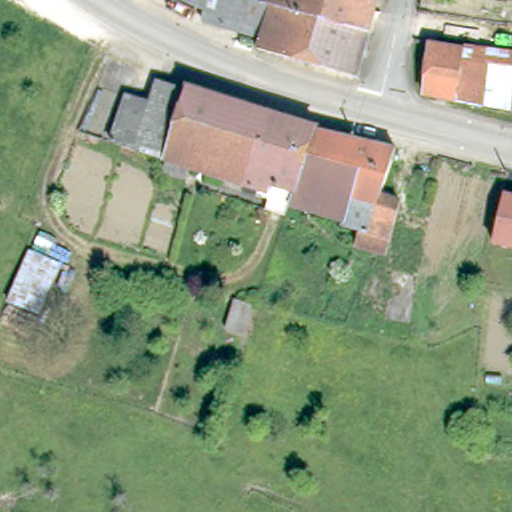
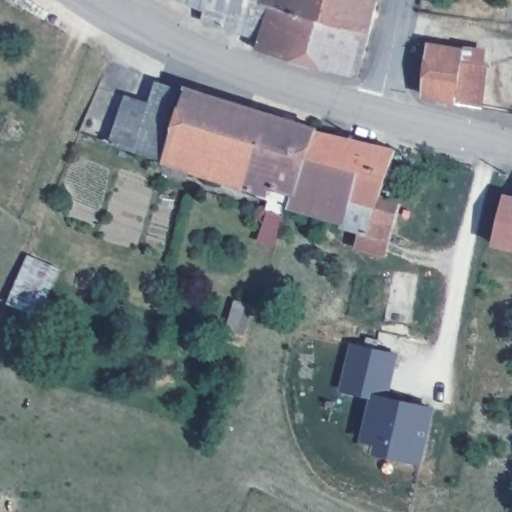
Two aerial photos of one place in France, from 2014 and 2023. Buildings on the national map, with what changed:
unchanged [(244,43),(247,34),(197,17),(200,9),(195,6),(181,0),(290,0),(371,0),(364,22),(346,71),(244,43)]
unchanged [(455,97),(422,91),(427,41),(459,44),(455,97)]
unchanged [(459,44),(512,46),(512,110),(455,97),(459,44)]
unchanged [(400,150),(404,151),(403,156),(397,155),(384,196),(402,204),(384,262),(354,252),(359,235),(344,231),(345,225),(293,207),(291,214),(288,222),(262,214),(267,195),(208,177),(200,175),(194,173),(191,185),(168,179),(171,165),(117,149),(133,98),(155,104),(162,82),(191,91),(193,86),(322,124),(400,148),(400,150)]
unchanged [(508,196),(512,197),(512,242),(498,239),(508,196)]
unchanged [(40,314),(3,300),(23,252),(59,266),(40,314)]
new [(391,398),(437,406),(425,464),(375,455),(377,443),(362,440),(370,397),(340,392),(349,343),(399,353),(391,398)]

